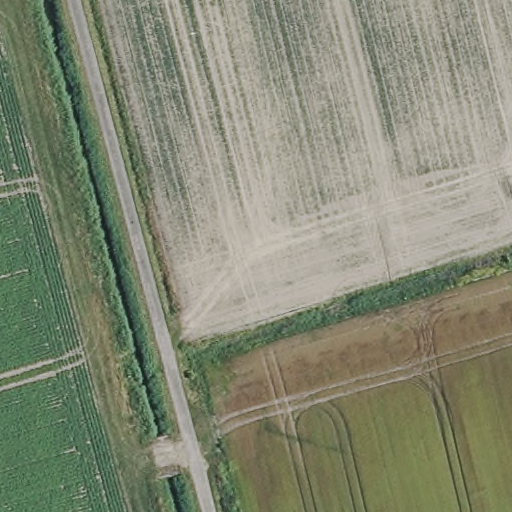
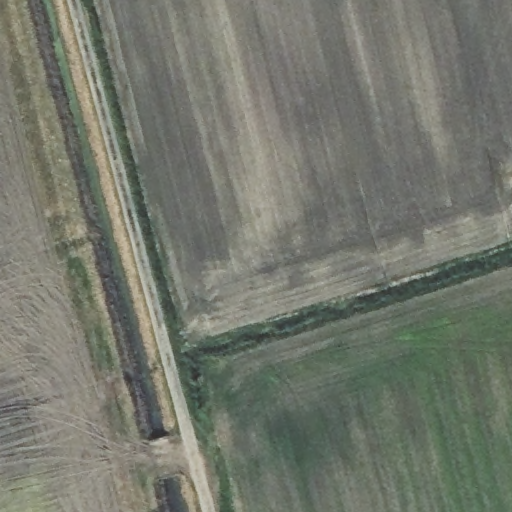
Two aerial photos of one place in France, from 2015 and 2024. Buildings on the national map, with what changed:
[]

